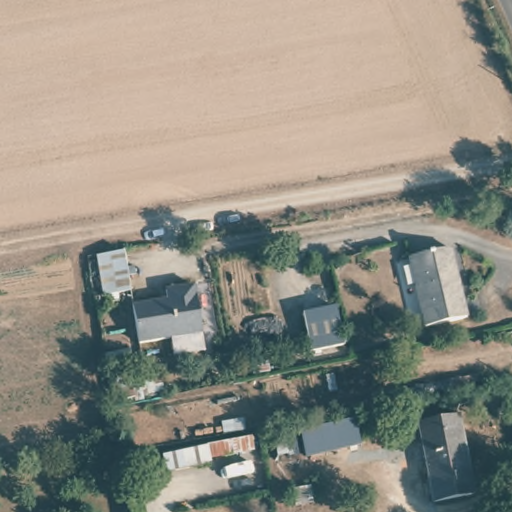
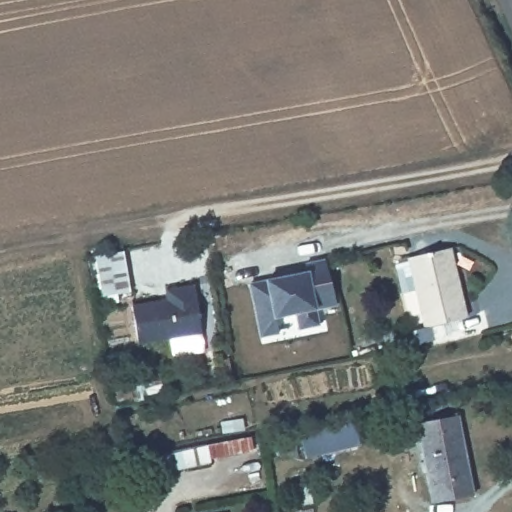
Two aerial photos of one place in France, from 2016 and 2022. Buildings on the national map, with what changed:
unchanged [(451,249),(466,318),(425,327),(409,258),(451,249)]
unchanged [(127,292),(100,297),(92,258),(120,253),(127,292)]
new [(317,309),(321,324),(302,329),(298,313),(277,317),(280,332),(261,336),(250,283),(308,271),(305,263),(327,258),(338,304),(317,309)]
unchanged [(139,346),(132,308),(167,302),(166,296),(166,292),(194,288),(195,291),(201,336),(139,346)]
demolished [(333,307),(340,345),(310,351),(302,313),(333,307)]
unchanged [(356,416),(361,432),(313,443),(315,449),(304,451),(298,430),(356,416)]
unchanged [(458,417),(473,496),(432,503),(417,425),(458,417)]
unchanged [(295,431),(298,454),(276,456),(274,435),(295,431)]
unchanged [(207,445),(208,447),(252,437),(254,449),(210,458),(211,464),(166,473),(162,454),(207,445)]
unchanged [(311,486),(313,504),(295,507),(292,489),(311,486)]

